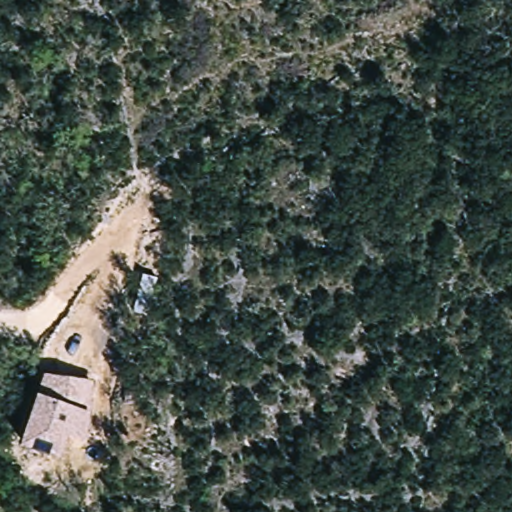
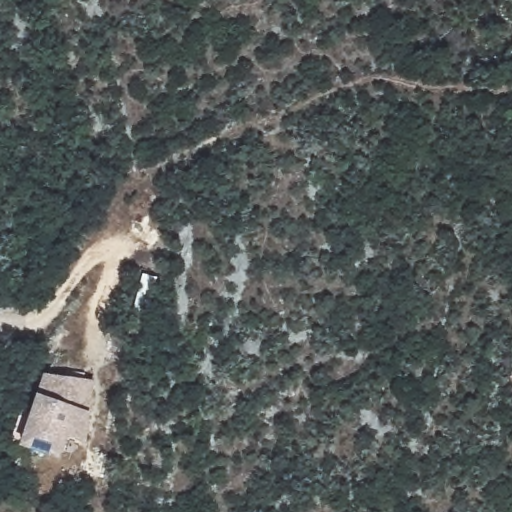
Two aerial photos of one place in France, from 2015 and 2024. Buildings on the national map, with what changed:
unchanged [(44,374),(92,381),(90,412),(86,442),(68,435),(59,460),(19,445),(37,393),(44,374)]

